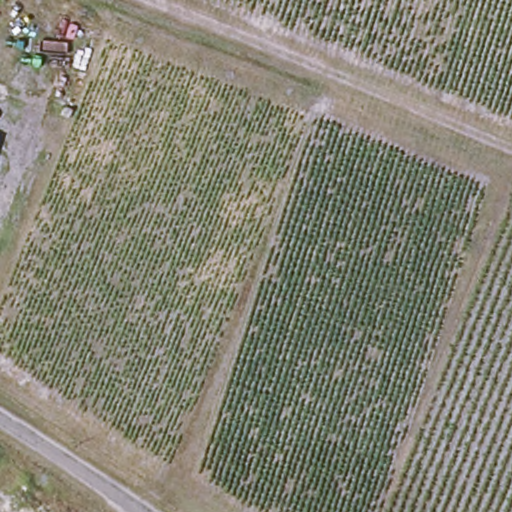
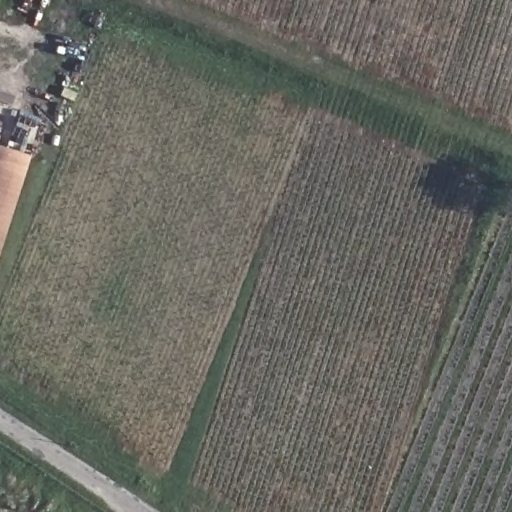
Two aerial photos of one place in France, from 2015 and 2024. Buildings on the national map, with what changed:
new [(29,161),(0,253),(0,153),(29,161)]

